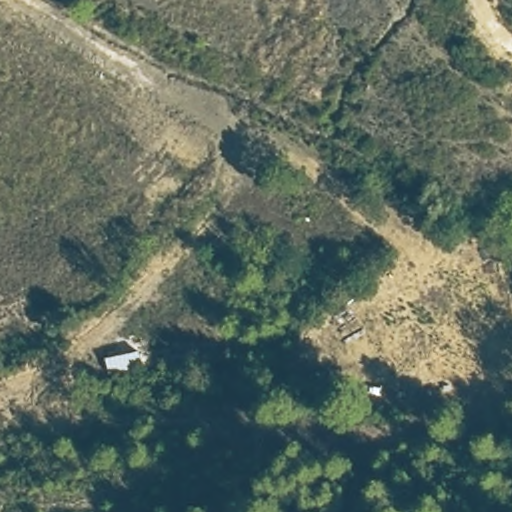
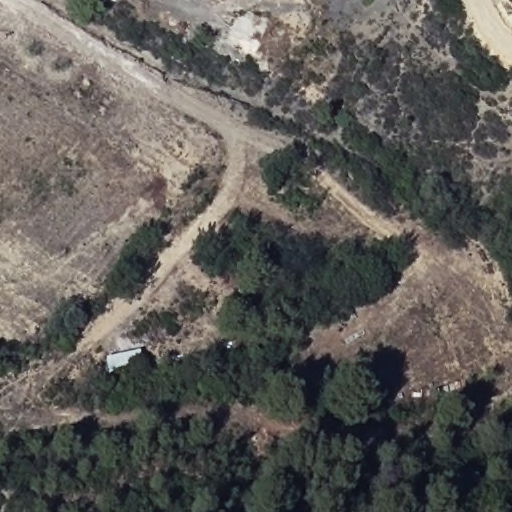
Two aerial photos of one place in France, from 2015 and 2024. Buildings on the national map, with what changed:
unchanged [(98,350),(142,344),(146,356),(105,365),(98,350)]

